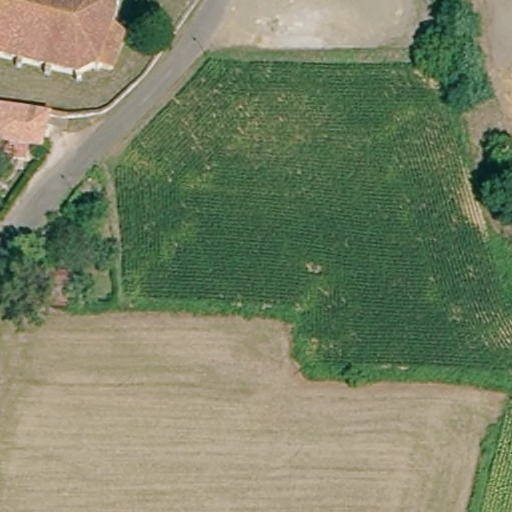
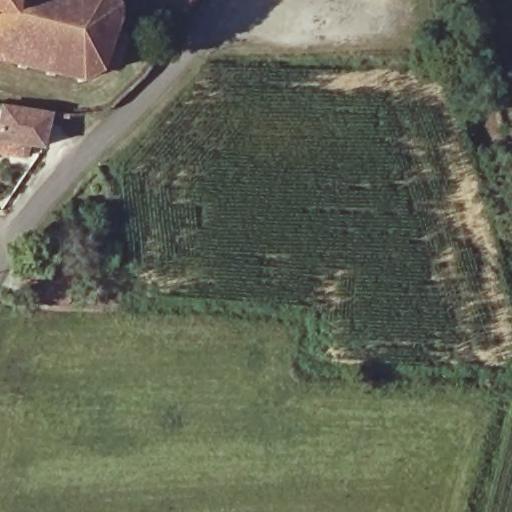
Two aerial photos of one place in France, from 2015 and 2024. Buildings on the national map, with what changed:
unchanged [(140,17),(132,29),(147,41),(129,71),(110,69),(102,77),(102,86),(92,85),(92,80),(71,74),(70,79),(62,77),(64,72),(46,67),(45,73),(36,70),(38,65),(20,60),(18,65),(10,63),(11,59),(0,56),(0,0),(134,0),(137,2),(140,17)]
unchanged [(0,134),(3,135),(8,107),(48,114),(43,141),(28,139),(26,151),(0,146),(0,134)]
unchanged [(71,278),(71,300),(40,300),(40,278),(71,278)]

